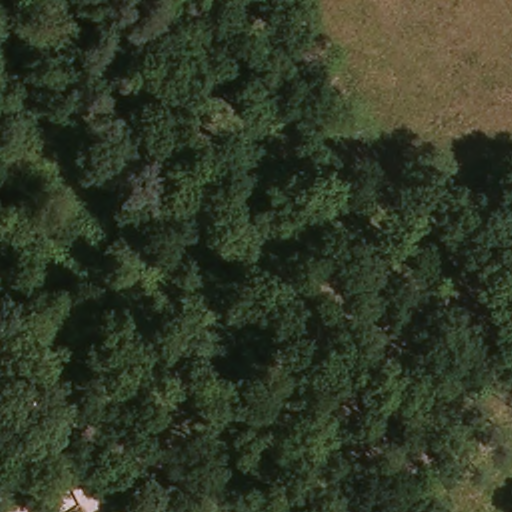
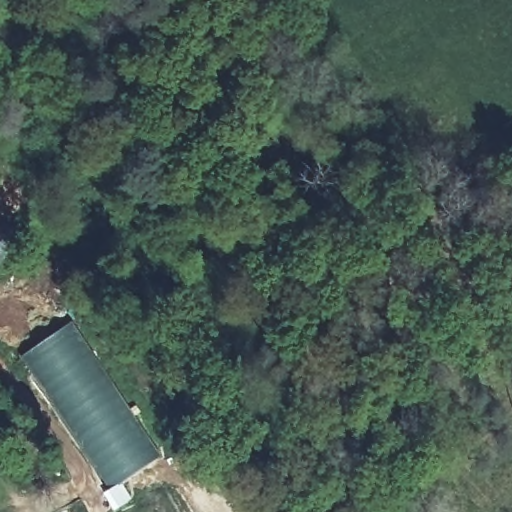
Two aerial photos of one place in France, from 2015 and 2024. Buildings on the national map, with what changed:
new [(6,222),(23,246),(0,266),(0,227),(6,222)]
new [(73,320),(164,456),(123,483),(133,501),(114,512),(103,493),(107,491),(20,356),(73,320)]

